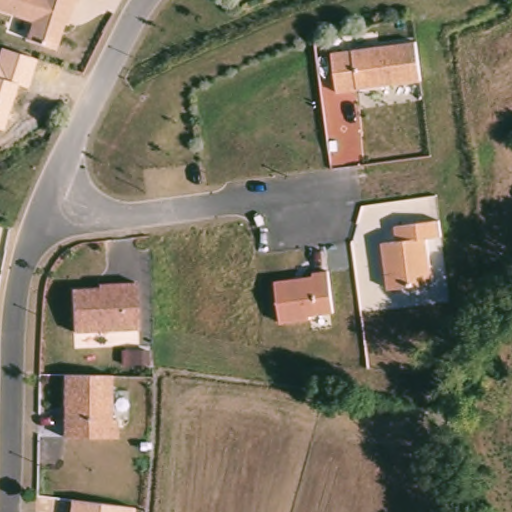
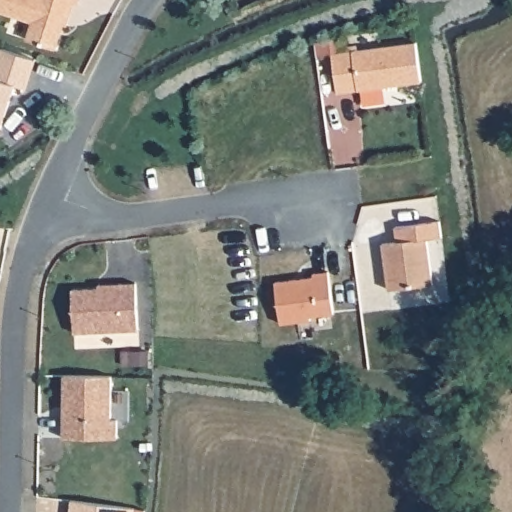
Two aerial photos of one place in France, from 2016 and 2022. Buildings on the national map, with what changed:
unchanged [(80,2),(76,1),(69,26),(64,25),(57,48),(27,40),(32,20),(0,10),(0,0),(81,0),(80,2)]
unchanged [(415,41),(420,81),(337,90),(332,52),(415,41)]
unchanged [(16,84),(2,129),(0,128),(0,47),(1,46),(37,59),(27,89),(16,84)]
unchanged [(396,225),(439,220),(441,238),(429,239),(435,284),(388,288),(388,280),(383,243),(396,242),(396,225)]
unchanged [(337,315),(279,322),(274,279),(331,272),(337,315)]
unchanged [(139,326),(75,331),(72,288),(137,283),(139,326)]
unchanged [(111,371),(112,416),(119,416),(119,436),(65,438),(64,373),(111,371)]
unchanged [(135,508),(135,512),(71,512),(72,500),(114,504),(135,508)]

